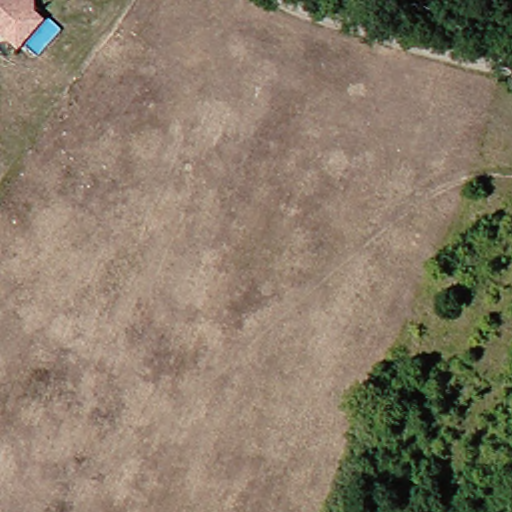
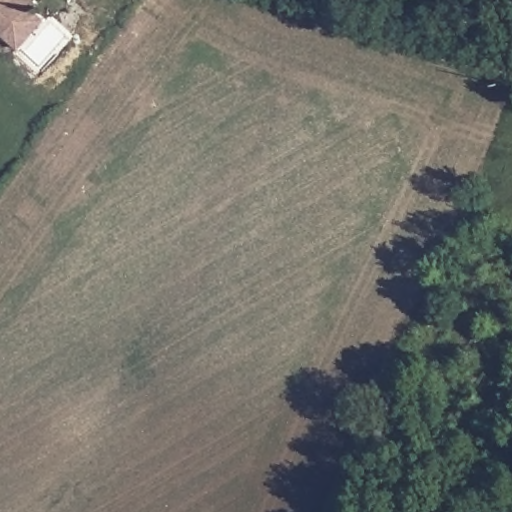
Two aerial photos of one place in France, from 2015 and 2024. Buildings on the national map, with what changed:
unchanged [(4,34),(0,30),(0,0),(35,0),(31,4),(46,18),(20,47),(4,34)]

